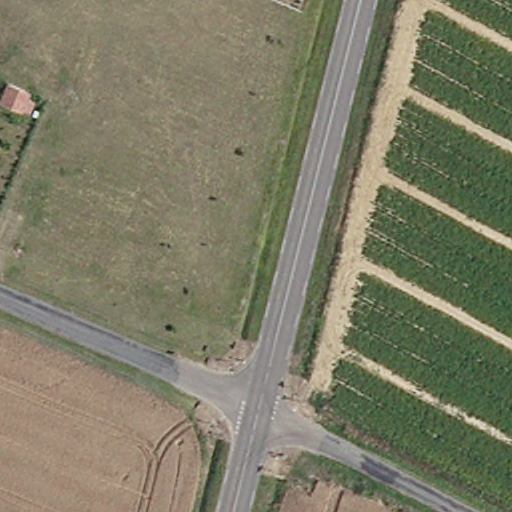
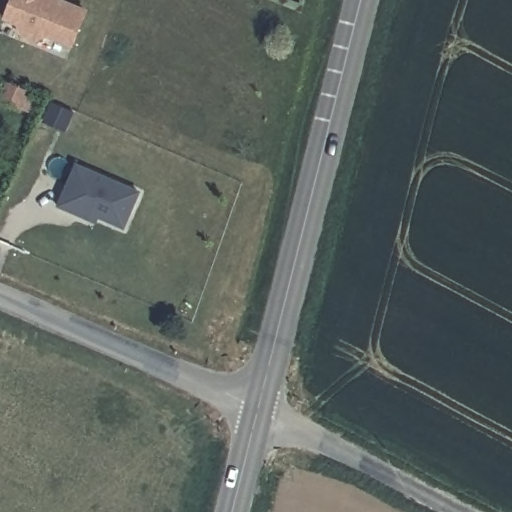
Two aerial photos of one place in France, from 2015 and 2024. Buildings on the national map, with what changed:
new [(86,11),(72,47),(47,38),(37,42),(23,36),(18,25),(5,21),(13,0),(57,0),(86,11)]
new [(66,133),(42,123),(52,102),(76,112),(66,133)]
new [(123,235),(57,207),(76,164),(141,192),(123,235)]

